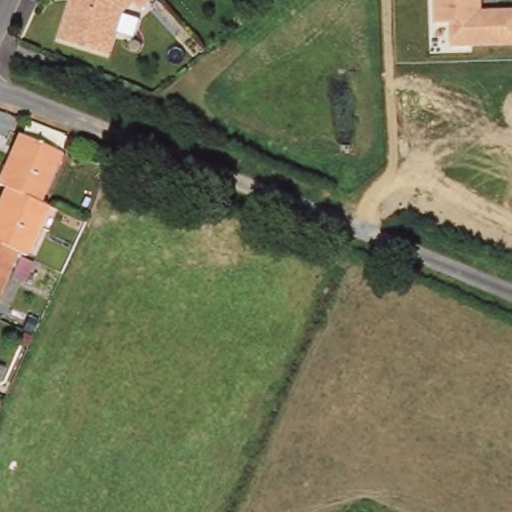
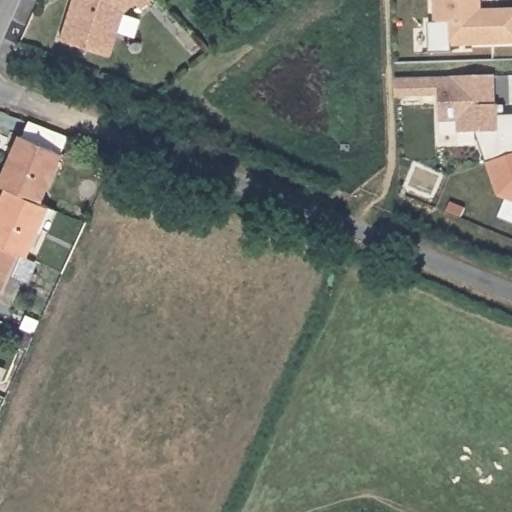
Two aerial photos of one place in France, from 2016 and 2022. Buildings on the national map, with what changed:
unchanged [(65,36),(74,0),(128,0),(122,5),(117,27),(111,48),(106,47),(65,36)]
unchanged [(137,0),(149,0),(143,6),(137,0)]
unchanged [(512,9),(512,47),(454,45),(454,20),(435,21),(435,0),(484,0),(484,9),(512,9)]
new [(503,105),(504,115),(512,115),(512,156),(492,163),(481,133),(463,133),(463,122),(445,123),(444,96),(426,97),(401,98),(400,79),(426,78),(443,77),(500,75),(501,105),(503,105)]
unchanged [(7,192),(0,190),(0,173),(8,154),(14,157),(21,140),(29,123),(68,139),(60,156),(39,206),(7,192)]
new [(492,163),(512,156),(512,200),(504,196),(492,163)]
unchanged [(26,259),(19,256),(0,248),(0,206),(7,192),(39,206),(47,210),(26,259)]
unchanged [(0,297),(0,248),(19,256),(0,297)]

